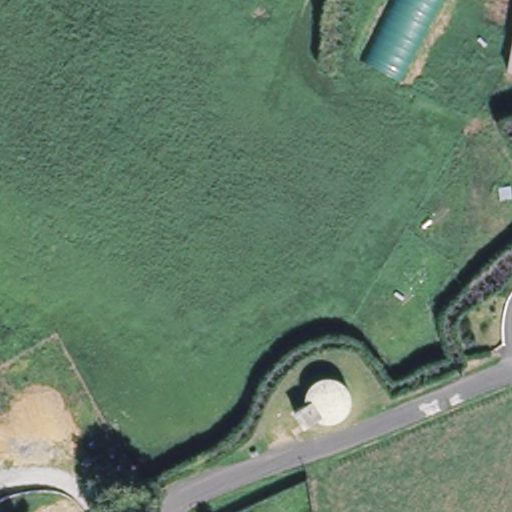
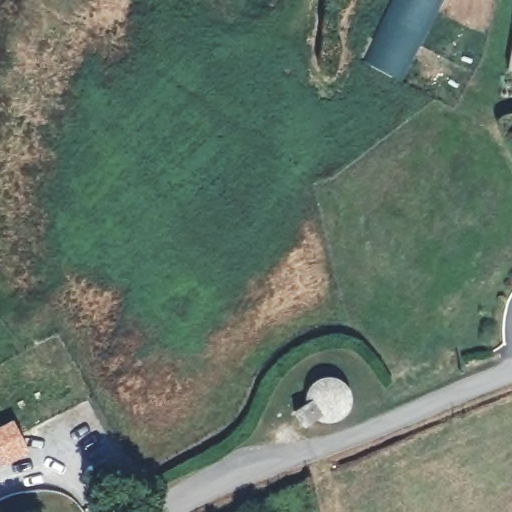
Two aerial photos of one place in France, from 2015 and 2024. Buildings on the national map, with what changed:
unchanged [(367,60),(398,0),(441,0),(402,80),(367,60)]
unchanged [(510,62),(512,49),(512,62),(510,62)]
new [(30,453),(0,468),(0,425),(12,418),(30,453)]

